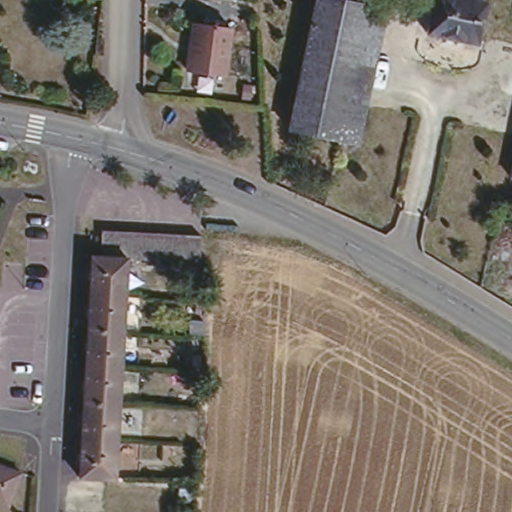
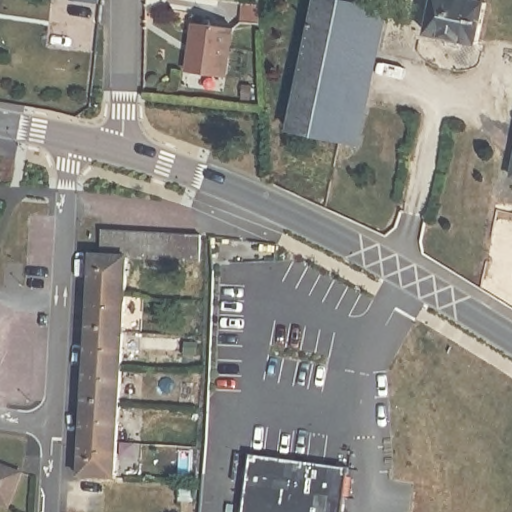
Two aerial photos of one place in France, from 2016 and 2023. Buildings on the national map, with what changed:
unchanged [(379,0),(389,2),(362,147),(288,129),(312,0),(379,0)]
unchanged [(456,0),(456,4),(466,7),(467,0),(475,0),(477,0),(471,41),(428,32),(435,0),(456,0)]
unchanged [(224,77),(187,71),(191,41),(190,41),(192,23),(231,28),(224,77)]
unchanged [(114,477),(115,477),(114,479),(78,476),(78,474),(79,474),(81,438),(83,402),(85,366),(87,330),(89,294),(91,258),(90,258),(90,256),(99,257),(100,229),(202,233),(201,261),(126,257),(114,477)]
unchanged [(193,480),(173,480),(173,465),(181,465),(181,447),(194,448),(193,480)]
new [(347,464),(342,512),(242,512),(250,452),(347,464)]
unchanged [(10,506),(10,505),(0,501),(0,463),(23,472),(25,472),(12,506),(10,506)]

